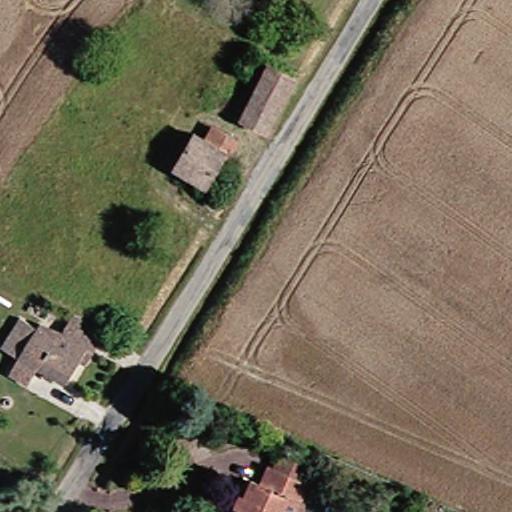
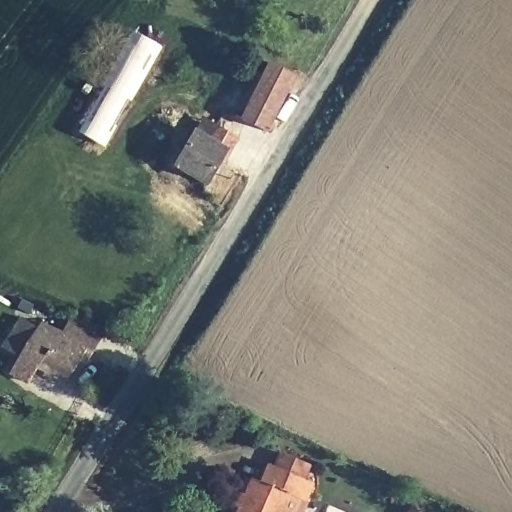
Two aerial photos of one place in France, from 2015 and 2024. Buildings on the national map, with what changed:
new [(79,134),(134,35),(161,50),(107,150),(79,134)]
unchanged [(263,142),(241,129),(245,119),(232,113),(259,62),(295,85),(263,142)]
unchanged [(194,190),(163,171),(180,139),(191,144),(200,129),(221,140),(194,190)]
unchanged [(2,344),(20,318),(36,328),(42,321),(66,337),(72,321),(101,335),(89,352),(86,350),(65,385),(2,344)]
unchanged [(252,486),(261,467),(266,469),(273,455),(300,468),(293,482),(306,486),(297,508),(295,512),(232,512),(246,483),(252,486)]

